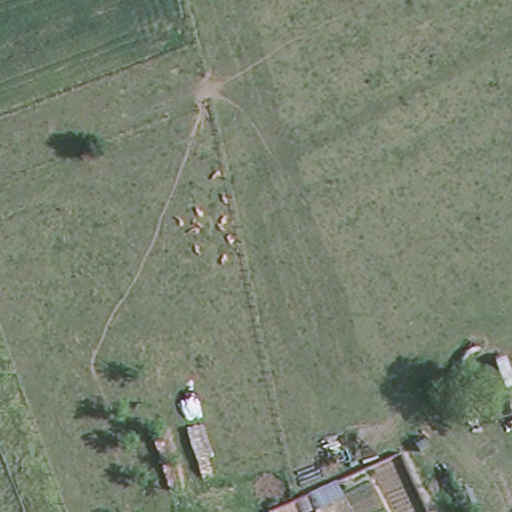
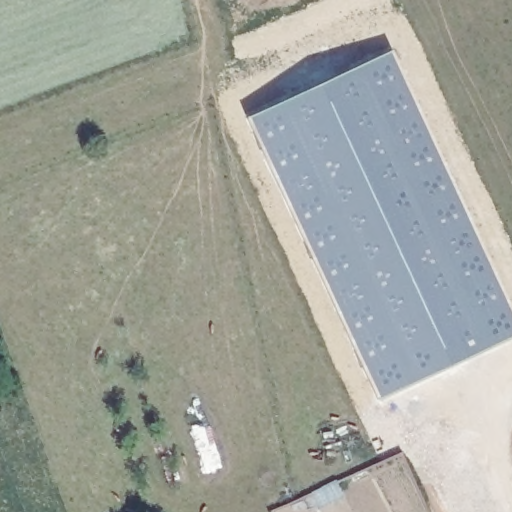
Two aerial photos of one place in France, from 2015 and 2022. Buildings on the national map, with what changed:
new [(512,340),(380,401),(251,119),(393,51),(512,307),(512,340)]

